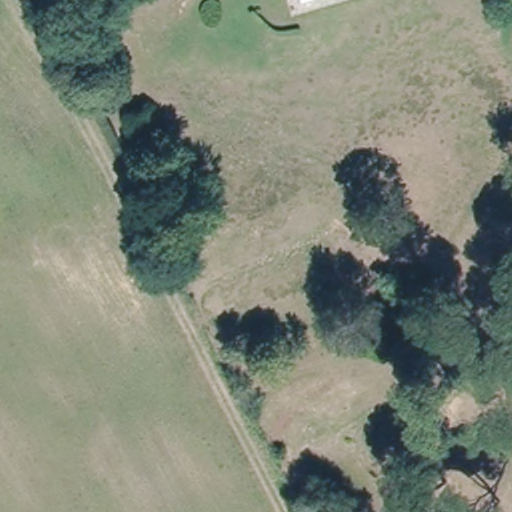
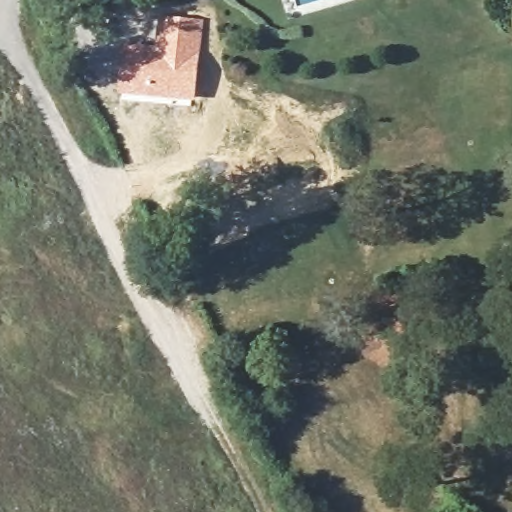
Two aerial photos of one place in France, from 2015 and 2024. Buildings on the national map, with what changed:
new [(121,42),(155,44),(158,14),(204,19),(195,100),(117,94),(121,42)]

